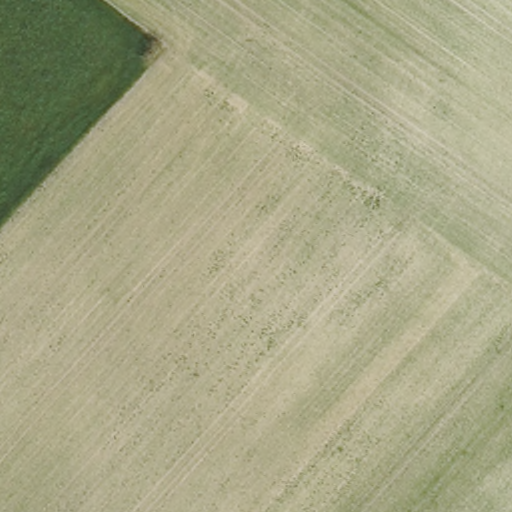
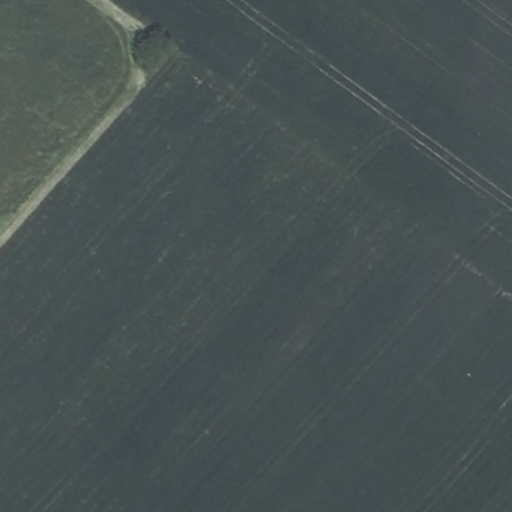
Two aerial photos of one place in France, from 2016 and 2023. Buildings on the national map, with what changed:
[]

